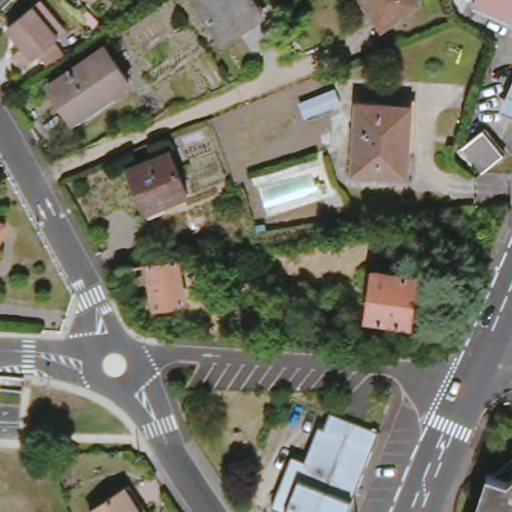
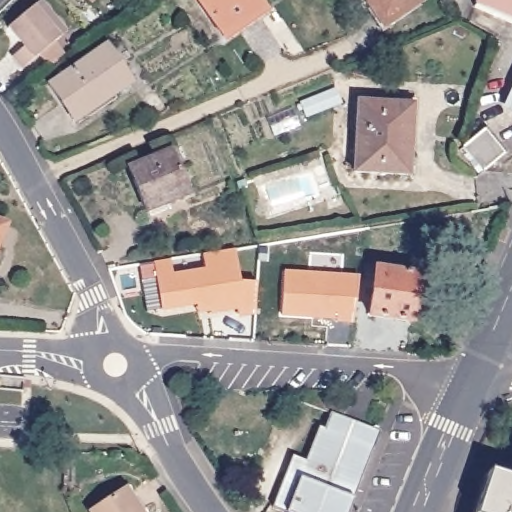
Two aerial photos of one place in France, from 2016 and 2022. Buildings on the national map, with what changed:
unchanged [(93,3),(90,0),(96,0),(93,3)]
unchanged [(200,0),(252,0),(265,17),(227,42),(200,0)]
unchanged [(373,6),(369,8),(364,0),(417,0),(418,1),(384,24),(373,6)]
unchanged [(475,0),(512,0),(512,20),(474,3),(475,0)]
unchanged [(51,68),(37,54),(20,69),(10,57),(22,48),(6,29),(39,2),(63,32),(53,41),(64,55),(51,68)]
unchanged [(49,84),(105,45),(129,80),(74,120),(49,84)]
unchanged [(512,82),(512,114),(500,109),(512,82)]
unchanged [(299,101),(334,88),(339,101),(305,115),(299,101)]
unchanged [(353,170),(358,100),(403,103),(400,150),(408,151),(407,173),(353,170)]
unchanged [(465,150),(489,134),(506,158),(484,176),(465,150)]
unchanged [(133,169),(175,152),(193,196),(150,212),(133,169)]
unchanged [(4,225),(0,233),(0,224),(4,225)]
new [(170,262),(173,274),(205,269),(203,255),(235,249),(239,282),(257,283),(255,315),(238,317),(237,310),(199,314),(198,307),(160,310),(154,264),(170,262)]
demolished [(186,253),(187,259),(179,261),(186,298),(156,303),(154,293),(126,298),(120,264),(186,253)]
unchanged [(368,316),(374,269),(417,274),(410,322),(368,316)]
new [(357,275),(353,323),(281,317),(284,271),(357,275)]
unchanged [(291,458),(304,463),(319,427),(323,428),(329,411),(341,417),(359,423),(336,482),(357,491),(348,512),(281,512),(272,508),(282,482),(291,458)]
unchanged [(360,423),(372,428),(379,431),(357,491),(336,482),(359,423),(360,423)]
unchanged [(496,477),(512,462),(512,512),(478,512),(491,475),(496,477)]
unchanged [(126,489),(139,512),(95,512),(94,509),(126,489)]
unchanged [(143,512),(140,512),(142,510),(143,512)]

